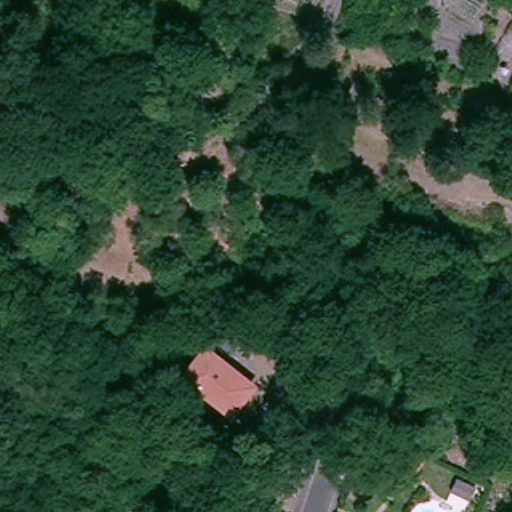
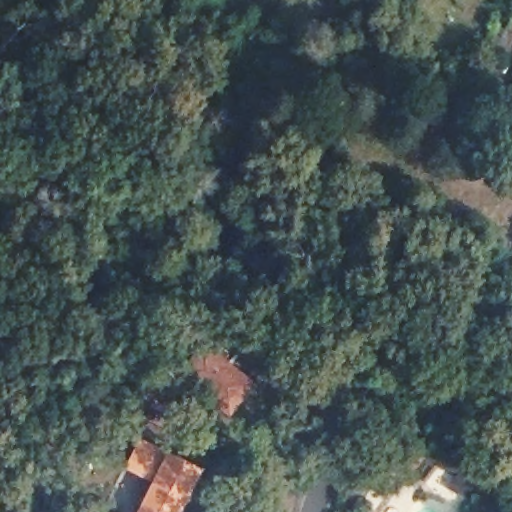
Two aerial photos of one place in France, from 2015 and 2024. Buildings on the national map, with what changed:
unchanged [(205,350),(253,386),(231,414),(184,377),(205,350)]
new [(141,434),(153,408),(172,421),(166,431),(169,433),(167,437),(205,461),(204,464),(207,466),(184,512),(136,512),(150,483),(123,469),(141,434)]
unchanged [(407,441),(426,454),(415,470),(396,456),(407,441)]
unchanged [(253,469),(270,478),(260,500),(242,491),(253,469)]

